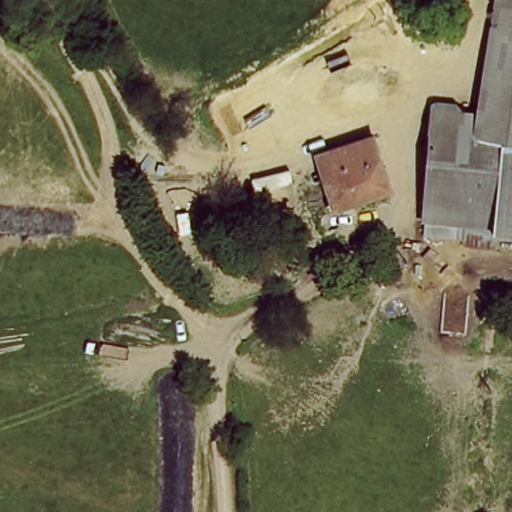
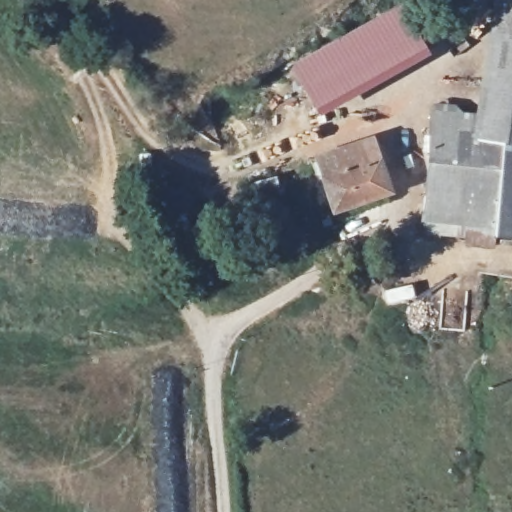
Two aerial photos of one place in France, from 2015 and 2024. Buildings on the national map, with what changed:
unchanged [(469,226),(420,219),(431,101),(458,101),(458,111),(475,111),(495,0),(512,0),(512,241),(467,235),(469,226)]
new [(401,1),(430,55),(318,118),(287,64),(401,1)]
unchanged [(392,197),(332,219),(313,156),(373,134),(392,197)]
new [(275,175),(281,193),(254,202),(249,184),(275,175)]

